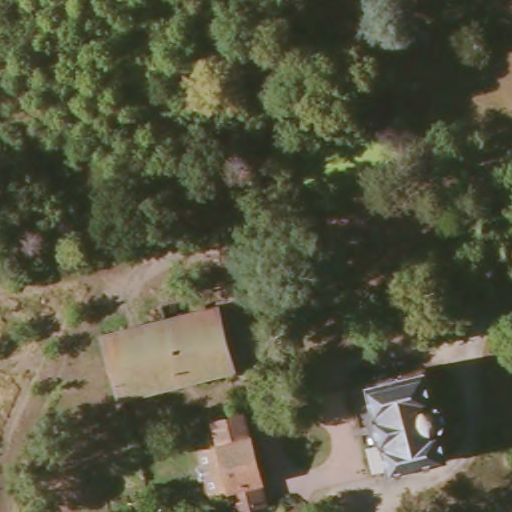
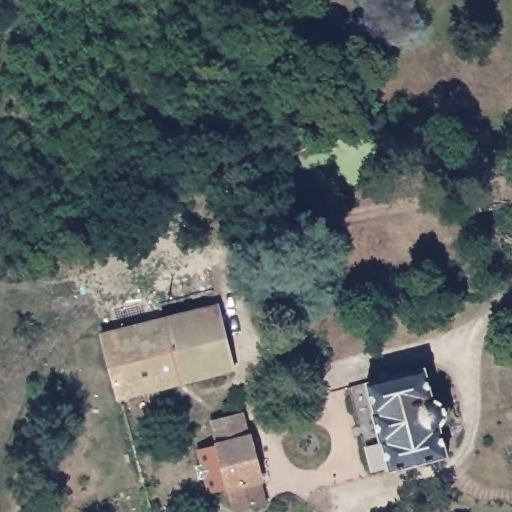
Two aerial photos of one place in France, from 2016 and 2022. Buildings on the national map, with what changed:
unchanged [(120,399),(102,333),(217,304),(235,369),(120,399)]
unchanged [(444,420),(440,425),(448,454),(391,470),(382,439),(381,440),(373,413),(376,412),(367,382),(426,367),(434,398),(440,400),(445,407),(446,415),(444,420)]
unchanged [(260,478),(266,499),(237,508),(230,483),(211,489),(207,475),(200,477),(197,465),(204,463),(201,449),(216,445),(209,422),(244,413),(249,434),(252,434),(262,478),(260,478)]

